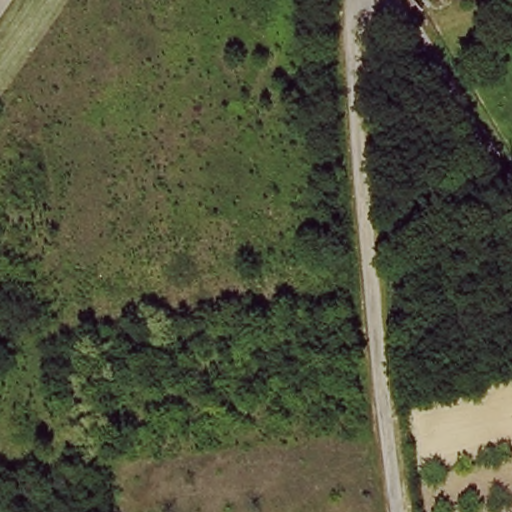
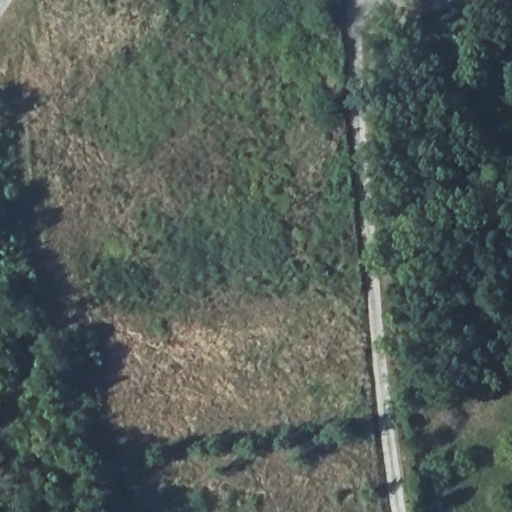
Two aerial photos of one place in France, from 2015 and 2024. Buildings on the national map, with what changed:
[]

